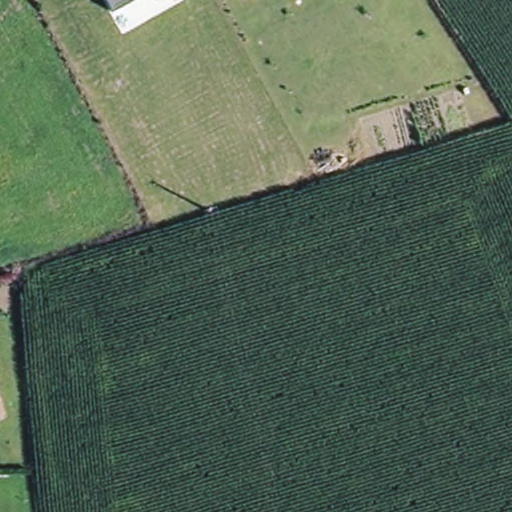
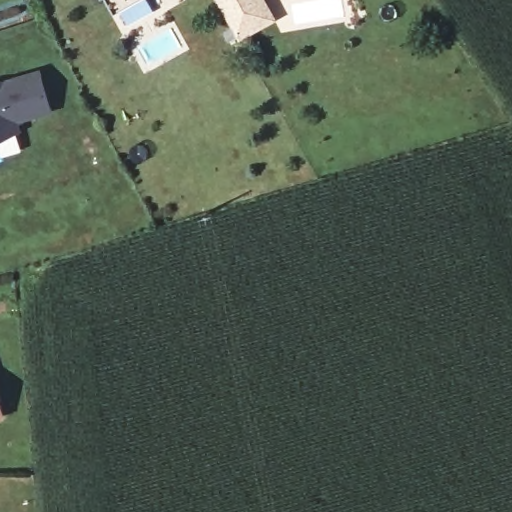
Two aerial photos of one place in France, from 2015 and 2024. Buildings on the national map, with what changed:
unchanged [(106,0),(138,0),(114,14),(106,0)]
new [(239,40),(217,0),(264,0),(273,21),(239,40)]
new [(51,111),(16,120),(20,131),(0,137),(0,80),(40,69),(51,111)]
unchanged [(0,414),(0,390),(8,411),(0,414)]

